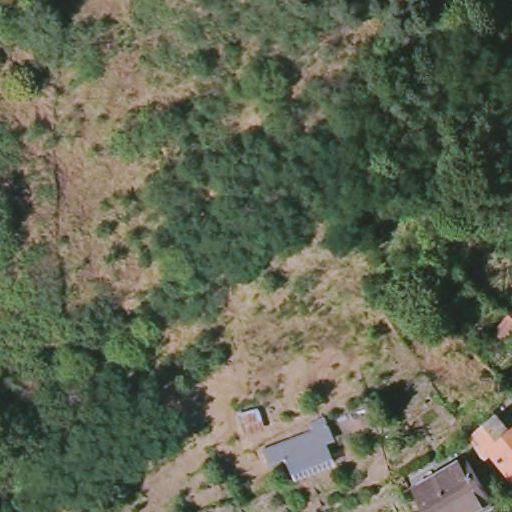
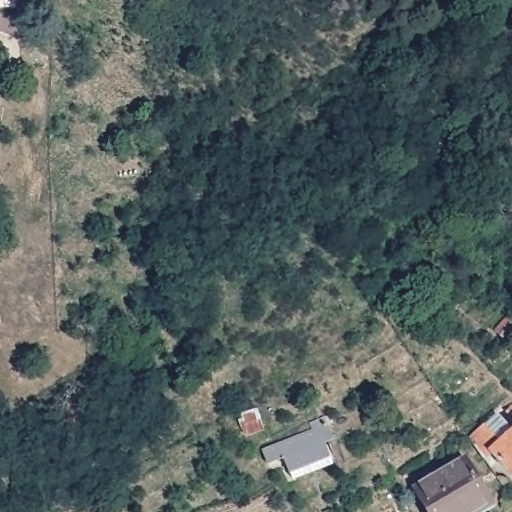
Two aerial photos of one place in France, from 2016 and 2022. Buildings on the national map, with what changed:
unchanged [(336,437),(326,443),(337,464),(291,481),(285,461),(268,463),(260,448),(323,416),(336,437)]
unchanged [(470,436),(483,427),(496,440),(512,429),(512,471),(494,451),(484,457),(470,436)]
unchanged [(492,509),(485,512),(431,512),(420,493),(418,487),(438,477),(466,463),(492,509)]

